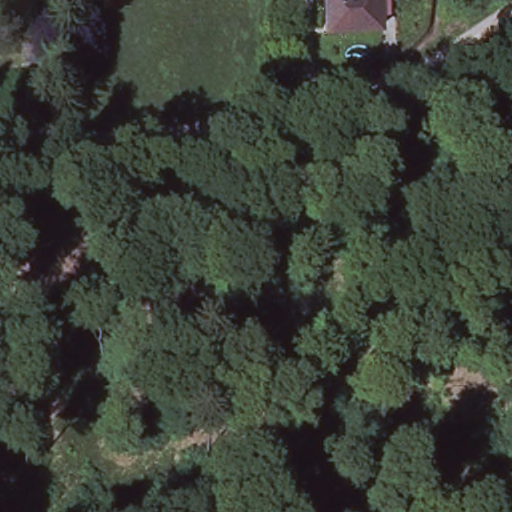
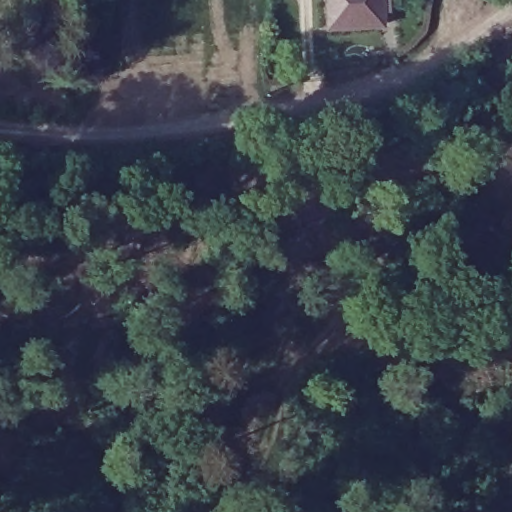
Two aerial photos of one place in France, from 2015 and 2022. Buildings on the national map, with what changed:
unchanged [(327,34),(327,0),(380,0),(380,34),(327,34)]

